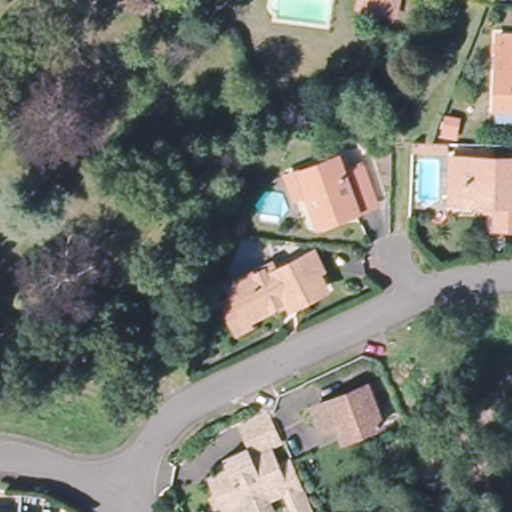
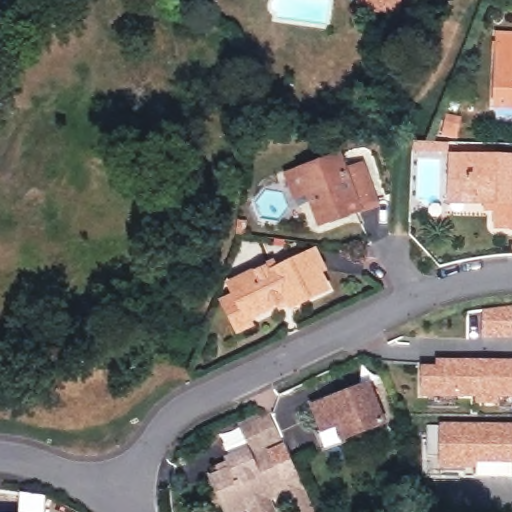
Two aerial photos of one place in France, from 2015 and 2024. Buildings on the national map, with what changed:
unchanged [(395,10),(369,6),(358,4),(358,0),(397,0),(395,10)]
unchanged [(499,33),(512,34),(512,105),(496,105),(499,33)]
unchanged [(265,140),(265,150),(249,150),(250,140),(265,140)]
unchanged [(447,145),(447,154),(411,153),(410,145),(424,145),(447,145)]
unchanged [(466,206),(452,206),(452,181),(452,160),(457,160),(457,150),(490,151),(490,160),(512,160),(512,211),(497,211),(486,211),(486,206),(466,206)]
unchanged [(337,178),(355,171),(369,206),(352,215),(350,212),(334,218),(335,221),(317,229),(303,196),(290,201),(281,178),(294,173),(329,159),(337,178)]
unchanged [(227,303),(239,297),(235,287),(279,266),(281,271),(321,254),(328,270),(322,273),(330,290),(296,305),(293,301),(249,321),(238,326),(227,303)]
new [(482,309),(512,304),(512,338),(481,338),(482,309)]
new [(499,405),(474,405),(474,395),(420,395),(420,367),(435,367),(434,358),(512,359),(512,397),(499,397),(499,405)]
unchanged [(384,417),(345,430),(341,415),(323,421),(314,400),(371,382),(384,417)]
unchanged [(284,437),(261,446),(251,424),(273,414),(284,437)]
new [(428,456),(429,424),(440,423),(512,424),(512,464),(478,464),(479,469),(439,469),(440,455),(428,456)]
unchanged [(295,488),(275,497),(271,490),(254,497),(257,505),(242,512),(234,512),(217,474),(236,465),(233,457),(252,449),(255,457),(274,447),(283,463),(294,458),(310,490),(298,495),(295,488)]
unchanged [(0,512),(0,510),(22,512),(39,512),(0,512)]

